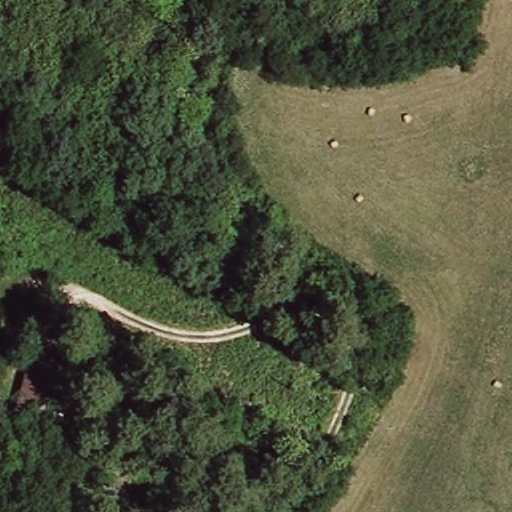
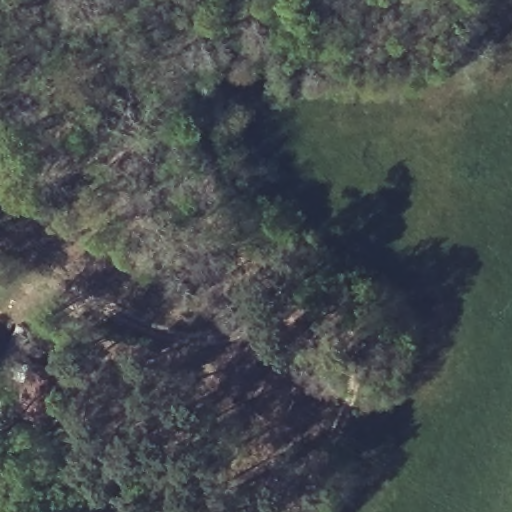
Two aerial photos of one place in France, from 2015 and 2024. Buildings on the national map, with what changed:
unchanged [(18,421),(30,373),(64,380),(53,429),(18,421)]

